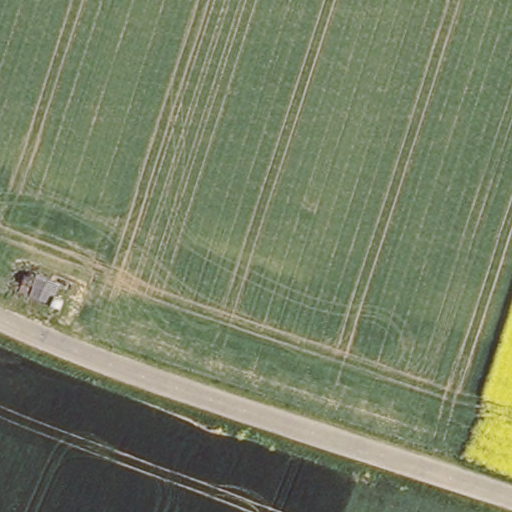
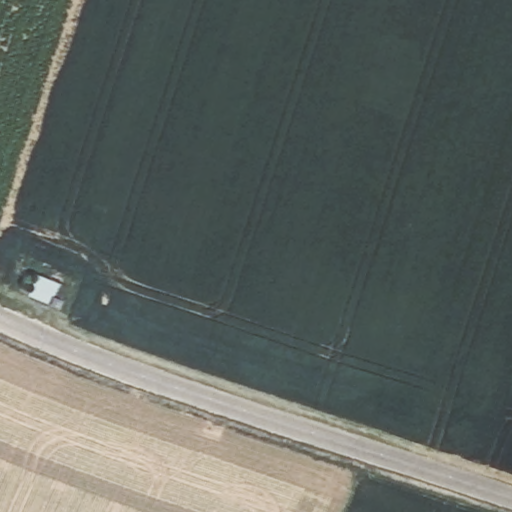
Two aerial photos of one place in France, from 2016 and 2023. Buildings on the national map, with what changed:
unchanged [(33,275),(51,285),(43,300),(25,290),(33,275)]

